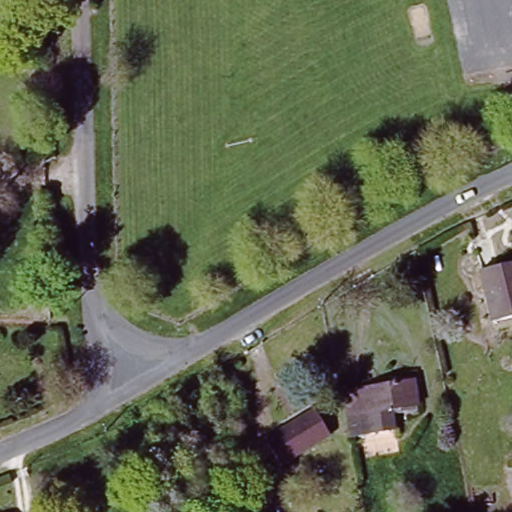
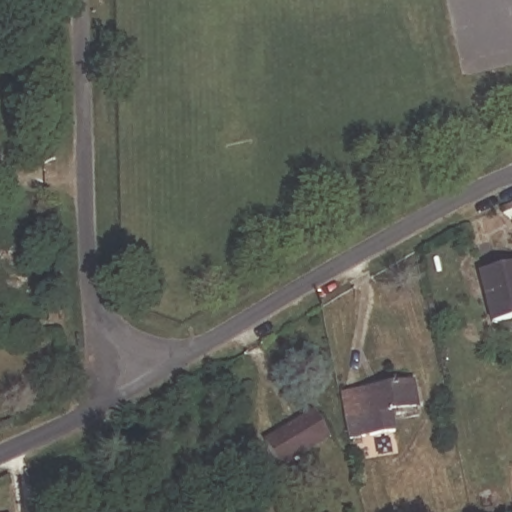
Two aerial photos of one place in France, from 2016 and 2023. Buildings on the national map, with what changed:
unchanged [(494,322),(480,272),(512,263),(512,319),(494,322)]
unchanged [(414,380),(418,401),(390,408),(393,428),(350,438),(348,430),(341,393),(414,380)]
unchanged [(329,434),(285,465),(269,441),(311,411),(329,434)]

